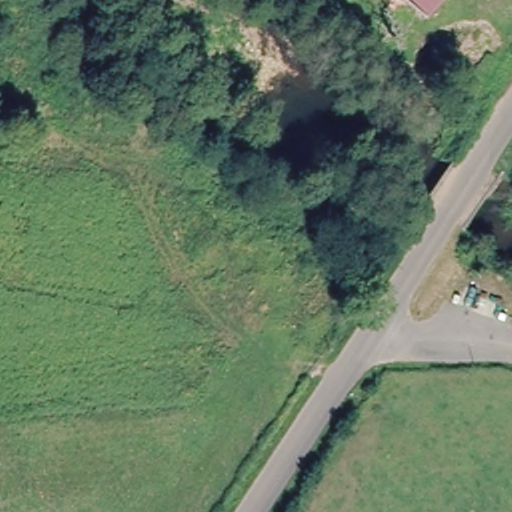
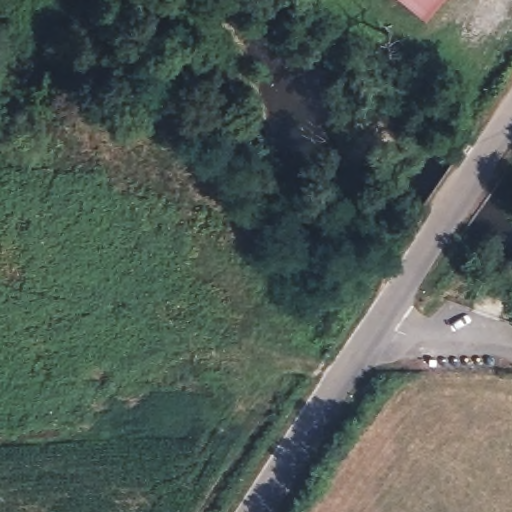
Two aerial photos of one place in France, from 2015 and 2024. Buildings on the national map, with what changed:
unchanged [(396,0),(440,0),(420,22),(396,0)]

